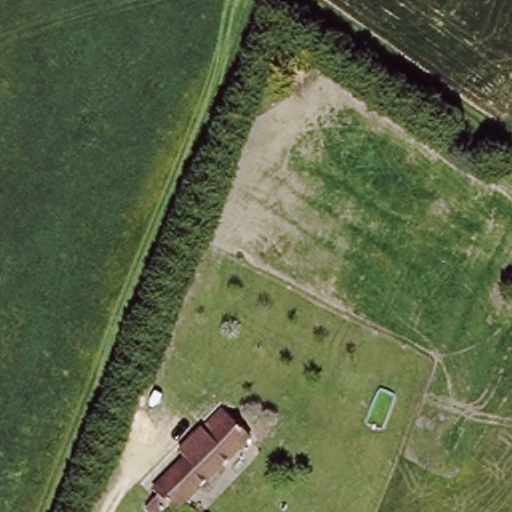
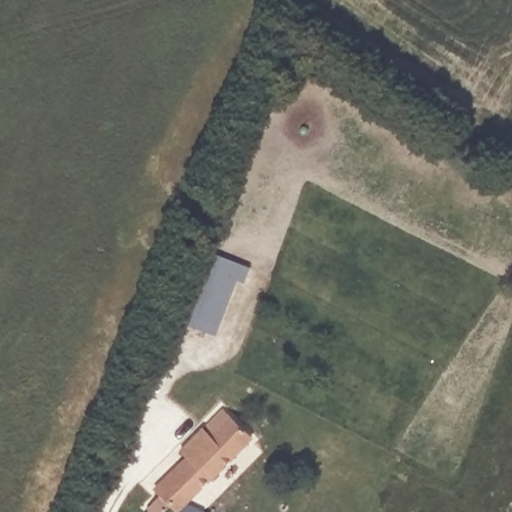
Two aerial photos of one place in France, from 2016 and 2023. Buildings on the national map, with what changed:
new [(205,252),(243,267),(217,334),(180,319),(205,252)]
unchanged [(218,403),(248,431),(205,480),(180,457),(174,452),(218,403)]
unchanged [(180,457),(205,480),(178,510),(152,487),(180,457)]

